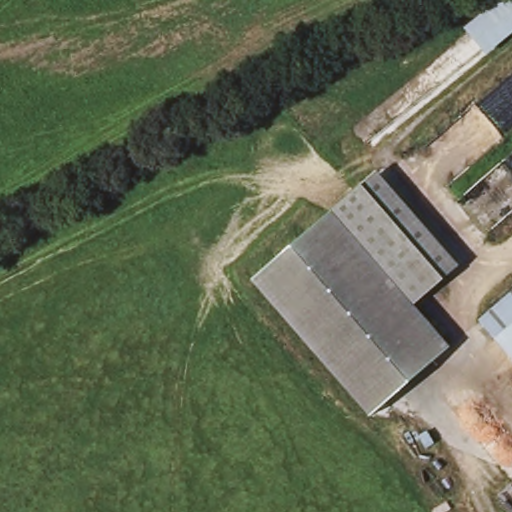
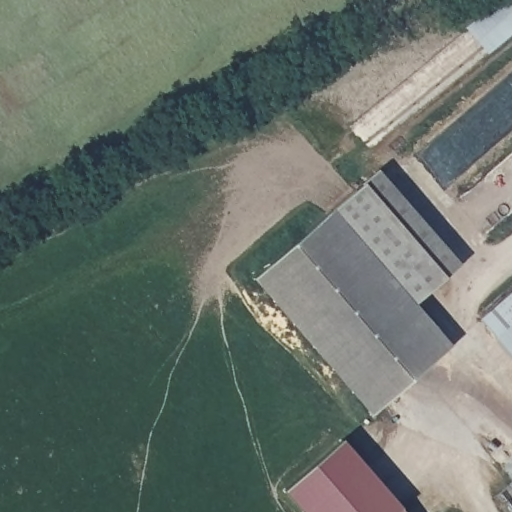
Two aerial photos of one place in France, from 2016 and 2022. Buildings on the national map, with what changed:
unchanged [(258,270),(339,210),(389,173),(462,269),(412,306),(449,355),(368,415),(258,270)]
unchanged [(512,292),(512,344),(486,310),(512,292)]
new [(284,491),(343,440),(404,512),(302,512),(284,491)]

